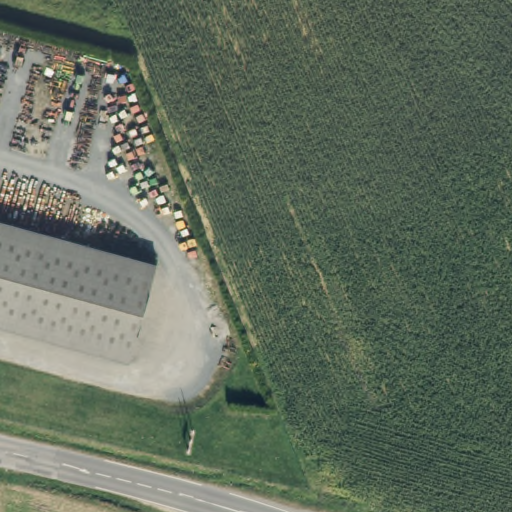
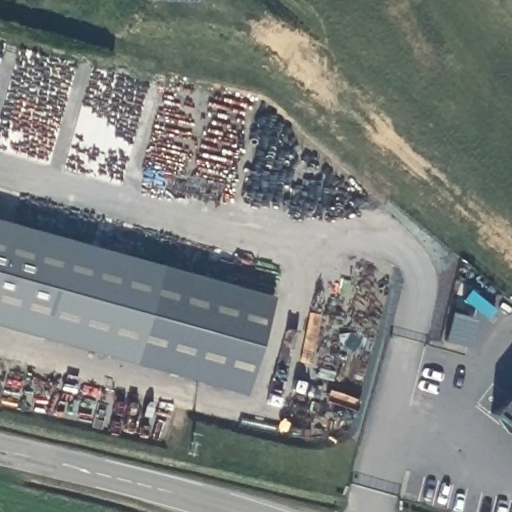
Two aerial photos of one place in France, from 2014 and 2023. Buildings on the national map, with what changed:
unchanged [(0,326),(0,222),(157,266),(130,364),(0,326)]
new [(157,266),(271,297),(246,394),(130,364),(157,266)]
new [(512,387),(512,429),(491,414),(512,387)]

